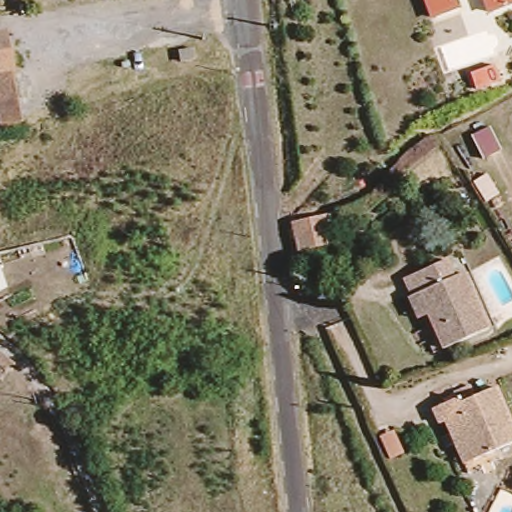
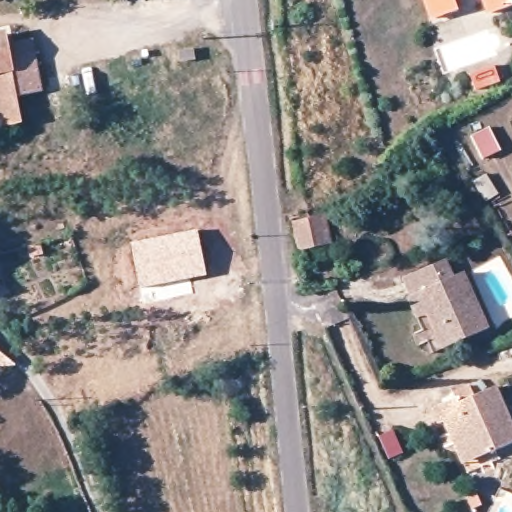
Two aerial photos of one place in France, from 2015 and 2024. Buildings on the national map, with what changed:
unchanged [(461,10),(439,19),(431,0),(457,0),(461,10)]
unchanged [(495,12),(490,0),(512,0),(512,5),(495,12)]
unchanged [(17,55),(20,65),(12,67),(13,70),(0,73),(0,35),(6,34),(10,56),(17,55)]
unchanged [(194,75),(181,77),(179,65),(192,62),(194,75)]
unchanged [(0,120),(0,73),(13,70),(24,124),(2,129),(0,120)]
unchanged [(498,70),(505,85),(480,95),(474,79),(498,70)]
unchanged [(325,214),(328,226),(329,230),(330,237),(330,240),(329,240),(309,244),(302,245),(299,246),(291,217),(325,210),(325,214)]
new [(198,229),(207,275),(139,288),(130,242),(198,229)]
unchanged [(465,275),(471,275),(487,335),(437,348),(426,310),(415,312),(405,274),(417,270),(459,257),(465,275)]
unchanged [(0,289),(0,285),(2,288),(0,289)]
unchanged [(0,347),(12,356),(17,360),(0,361),(0,347)]
unchanged [(450,421),(446,423),(439,407),(461,398),(464,401),(495,388),(512,423),(512,442),(475,458),(467,461),(450,421)]

